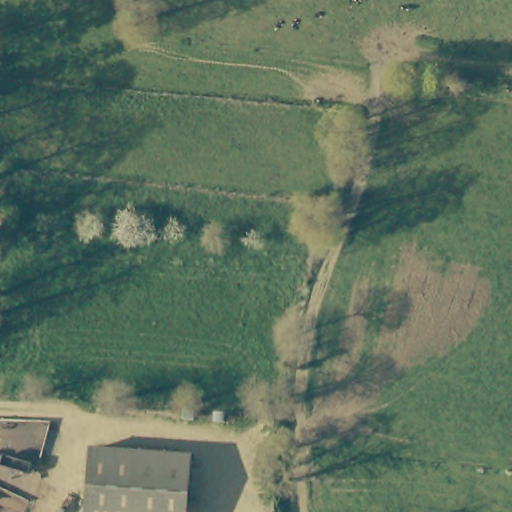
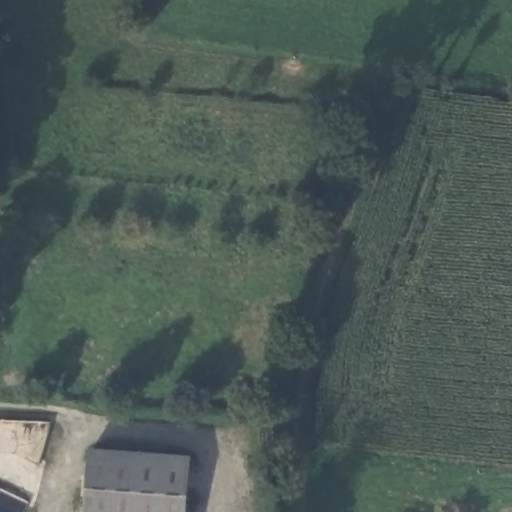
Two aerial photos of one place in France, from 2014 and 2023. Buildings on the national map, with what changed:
unchanged [(93,455),(195,459),(192,506),(192,512),(91,512),(91,497),(93,455)]

